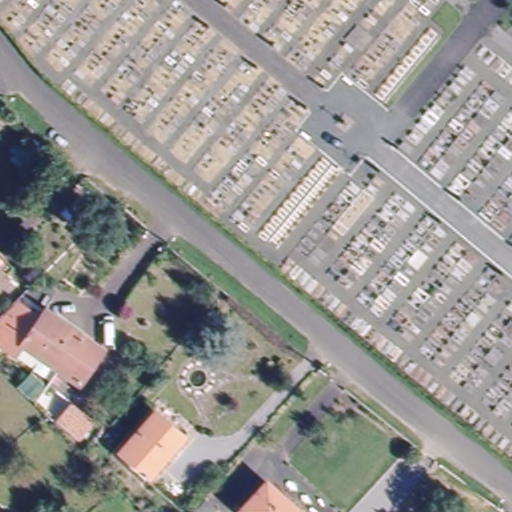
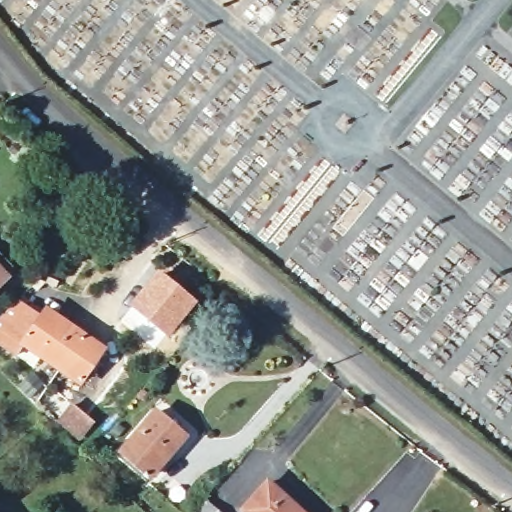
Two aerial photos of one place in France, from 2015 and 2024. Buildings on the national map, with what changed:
unchanged [(0,275),(0,260),(7,268),(0,275)]
new [(129,306),(127,305),(157,268),(197,302),(167,338),(155,350),(119,320),(129,307),(129,306)]
unchanged [(0,280),(0,278),(1,279),(0,280)]
unchanged [(102,350),(80,383),(23,344),(46,311),(102,350)]
unchanged [(0,323),(10,332),(9,333),(0,342),(0,323)]
unchanged [(79,437),(61,421),(75,405),(93,421),(79,437)]
unchanged [(145,472),(117,448),(151,407),(180,432),(145,472)]
unchanged [(298,511),(300,512),(244,512),(237,506),(262,479),(280,494),(282,490),(302,507),(298,511)]
unchanged [(207,502),(217,512),(197,512),(207,502)]

